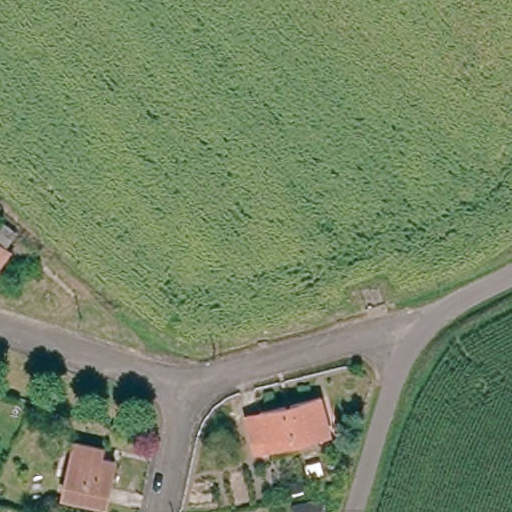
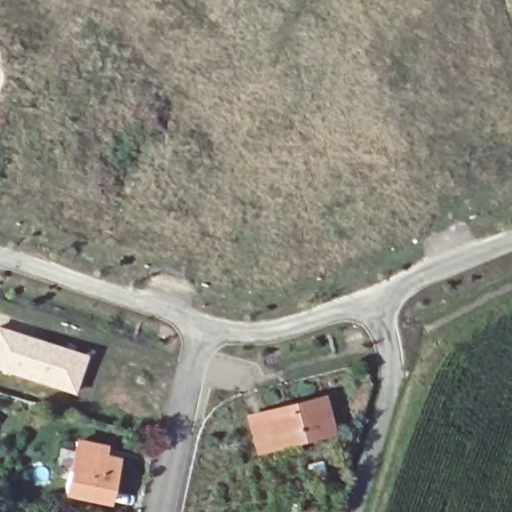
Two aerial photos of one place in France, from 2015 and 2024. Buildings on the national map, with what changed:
demolished [(6,256),(0,263),(0,252),(1,252),(6,256)]
new [(87,356),(74,396),(0,372),(0,327),(87,356)]
unchanged [(330,433),(256,451),(247,417),(321,399),(330,433)]
unchanged [(76,442),(104,448),(102,456),(115,460),(106,504),(65,495),(76,442)]

